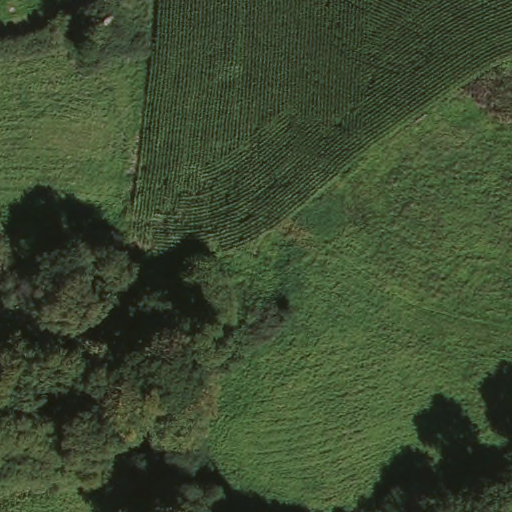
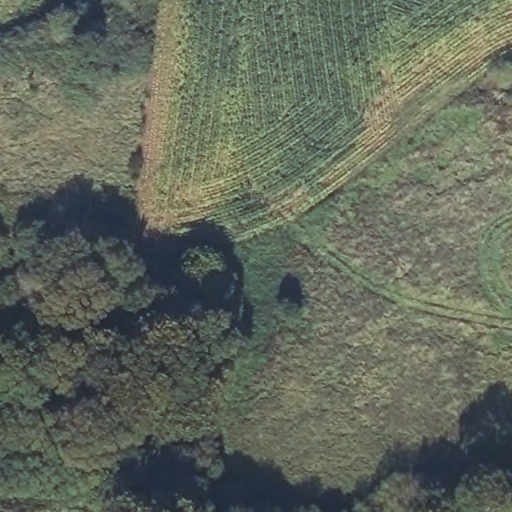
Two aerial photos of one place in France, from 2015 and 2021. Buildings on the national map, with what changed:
[]

